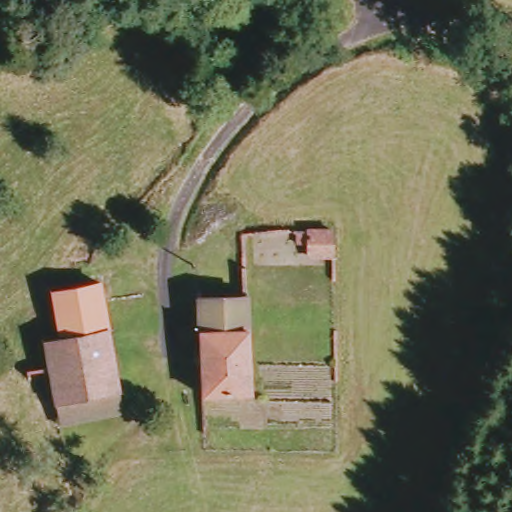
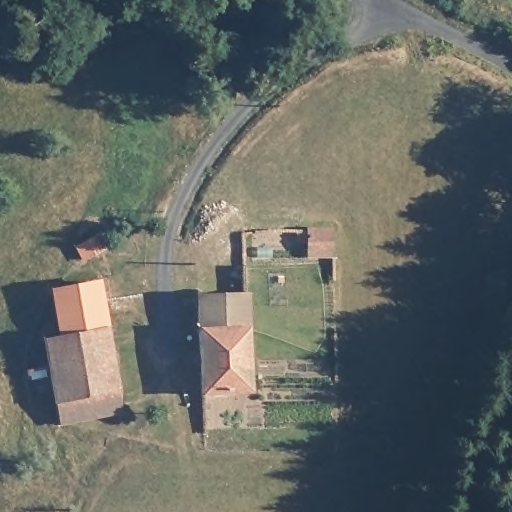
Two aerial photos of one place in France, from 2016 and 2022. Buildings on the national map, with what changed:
unchanged [(336,227),(336,248),(308,248),(308,227),(336,227)]
unchanged [(123,391),(62,400),(53,366),(47,342),(63,338),(55,293),(104,284),(123,391)]
unchanged [(207,394),(204,294),(252,293),(255,393),(207,394)]
unchanged [(127,412),(67,421),(62,400),(123,391),(127,412)]

